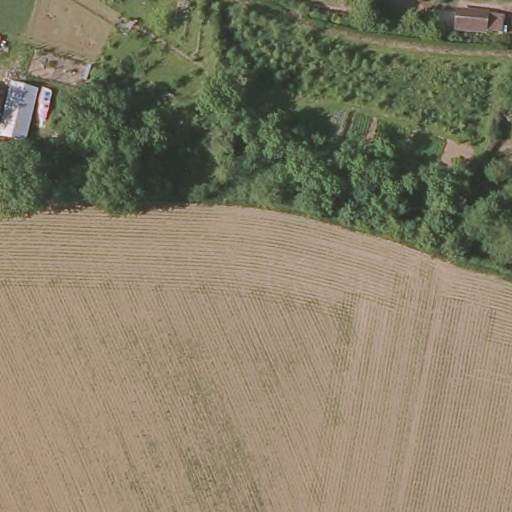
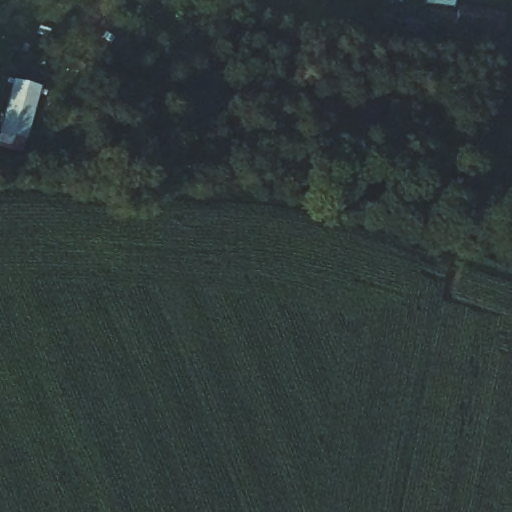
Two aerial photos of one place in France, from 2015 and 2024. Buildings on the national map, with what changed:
unchanged [(453,12),(503,16),(498,41),(449,34),(453,12)]
unchanged [(39,92),(25,143),(0,137),(0,117),(9,83),(39,92)]

